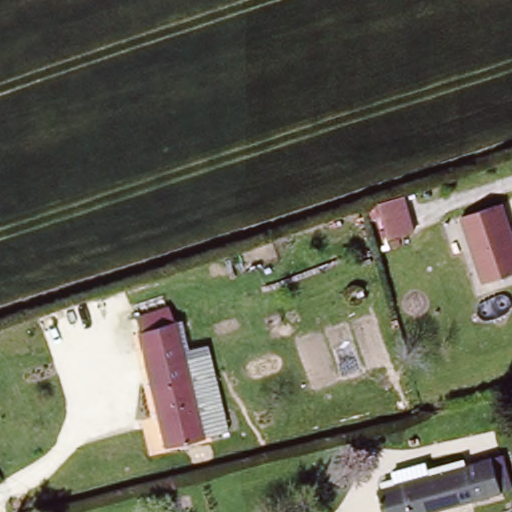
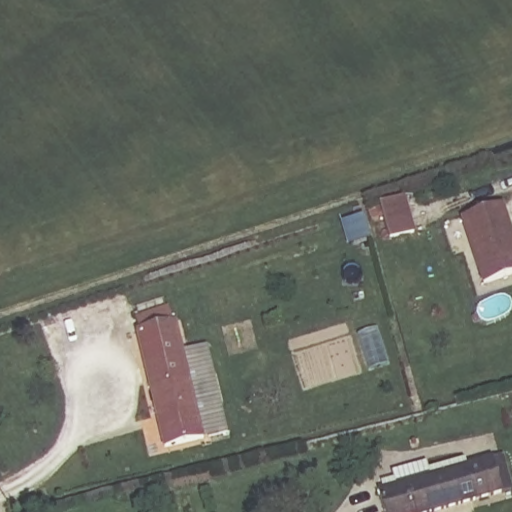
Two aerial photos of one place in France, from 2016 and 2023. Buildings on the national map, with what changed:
unchanged [(415,231),(389,237),(380,200),(405,194),(415,231)]
unchanged [(512,272),(484,282),(463,216),(502,203),(512,232),(512,272)]
unchanged [(182,350),(209,345),(225,430),(162,443),(139,326),(176,319),(182,350)]
unchanged [(512,471),(512,493),(490,498),(480,458),(507,451),(512,471)]
unchanged [(434,512),(398,512),(390,480),(409,476),(405,462),(439,453),(442,468),(480,458),(490,498),(434,512)]

